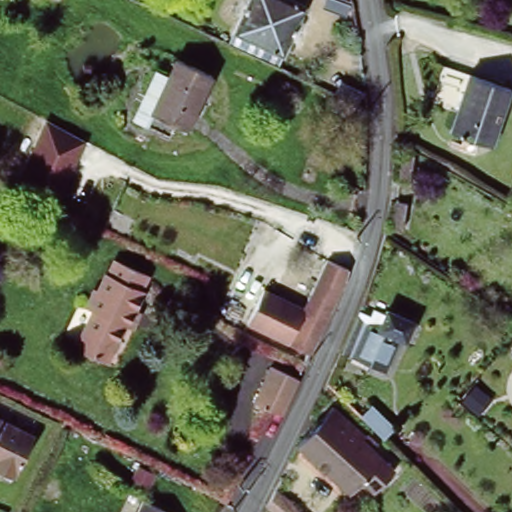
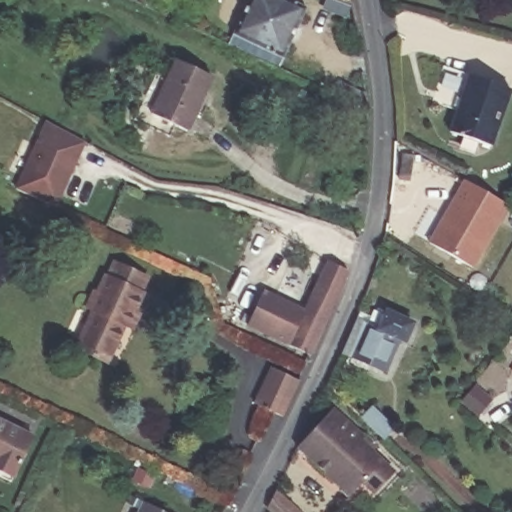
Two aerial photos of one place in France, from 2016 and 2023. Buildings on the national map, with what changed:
unchanged [(302,11),(277,67),(232,47),(253,0),(280,0),(302,11)]
unchanged [(350,4),(339,0),(349,0),(350,4)]
unchanged [(170,72),(177,55),(214,72),(188,127),(177,122),(172,133),(171,134),(135,117),(159,67),(170,72)]
unchanged [(445,68),(512,90),(492,147),(451,134),(459,111),(434,102),(445,68)]
unchanged [(87,141),(60,202),(17,182),(45,121),(87,141)]
unchanged [(404,154),(415,155),(410,182),(400,180),(404,154)]
new [(429,242),(465,180),(508,205),(472,267),(429,242)]
unchanged [(397,202),(407,205),(404,230),(394,227),(397,202)]
unchanged [(328,258),(347,267),(345,283),(313,353),(289,343),(248,325),(265,289),(305,307),(328,258)]
unchanged [(131,323),(127,322),(124,321),(107,358),(78,345),(95,307),(88,304),(95,288),(98,289),(106,272),(110,273),(116,260),(149,275),(134,306),(138,308),(131,323)]
unchanged [(381,371),(337,352),(339,351),(354,315),(355,313),(367,318),(370,311),(382,316),(384,312),(409,323),(402,341),(395,339),(392,347),(381,371)]
unchanged [(285,402),(279,417),(267,411),(252,403),(269,368),(295,382),(285,402)]
unchanged [(372,406),(395,427),(383,439),(361,417),(372,406)]
unchanged [(365,441),(362,444),(395,474),(375,496),(367,488),(362,484),(350,496),(298,447),(332,409),(365,441)]
unchanged [(35,433),(15,473),(0,465),(0,416),(35,433)]
unchanged [(269,508),(277,491),(299,512),(273,512),(270,510),(269,508)]
unchanged [(165,512),(138,512),(144,502),(165,512)]

